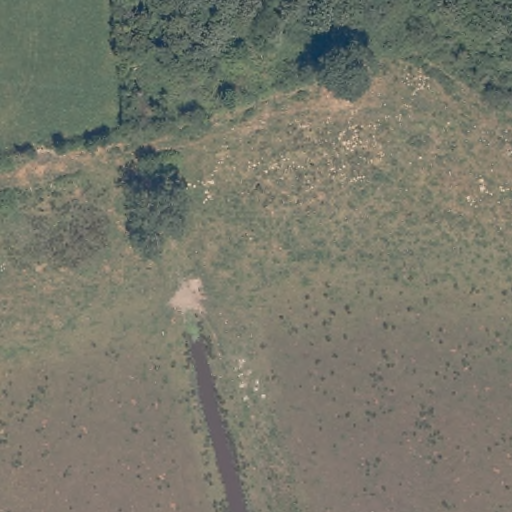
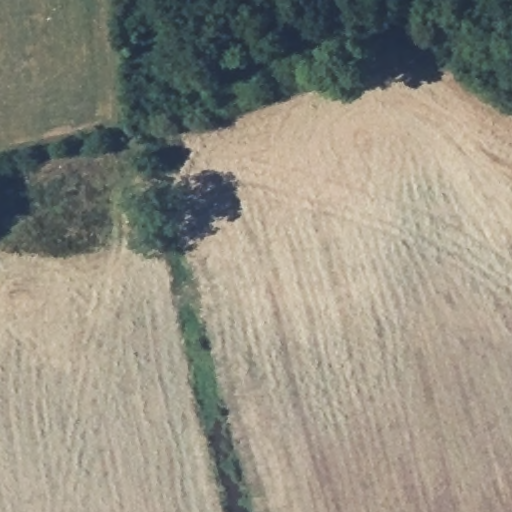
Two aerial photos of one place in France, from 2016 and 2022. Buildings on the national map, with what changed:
unchanged [(10,280),(30,272),(35,286),(15,292),(10,280)]

